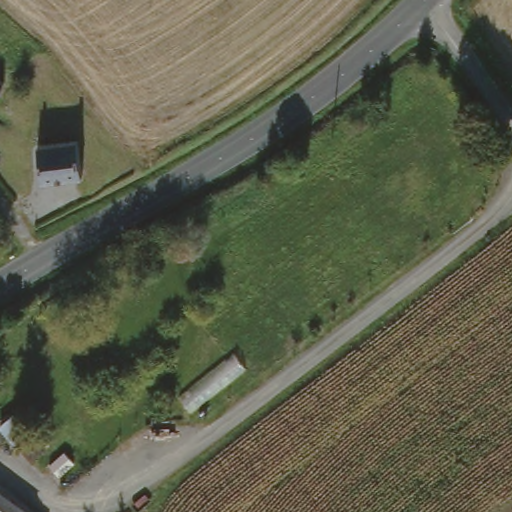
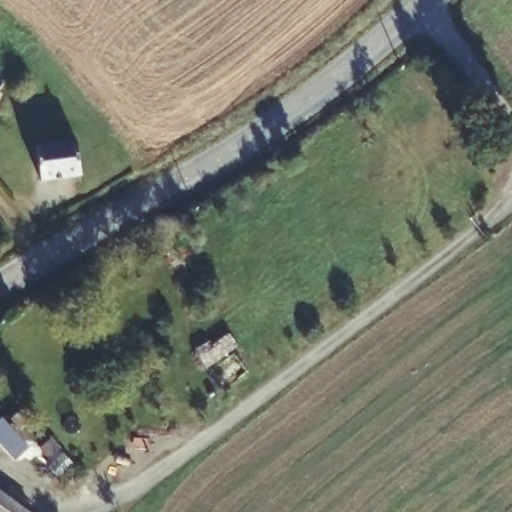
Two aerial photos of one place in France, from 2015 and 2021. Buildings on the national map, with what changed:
unchanged [(77,140),(83,171),(46,177),(40,146),(77,140)]
unchanged [(0,165),(0,162),(1,164),(0,165)]
unchanged [(0,512),(0,490),(32,512),(0,512)]

